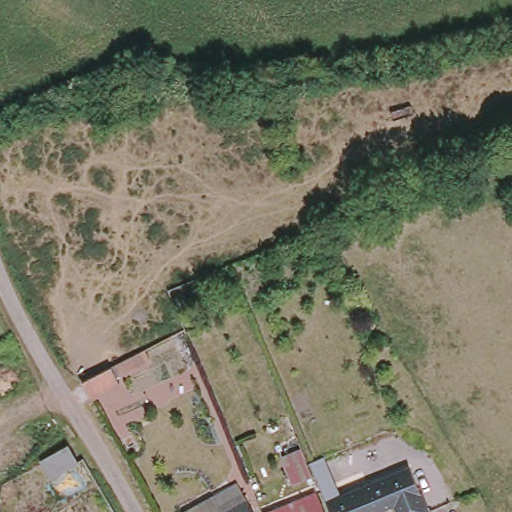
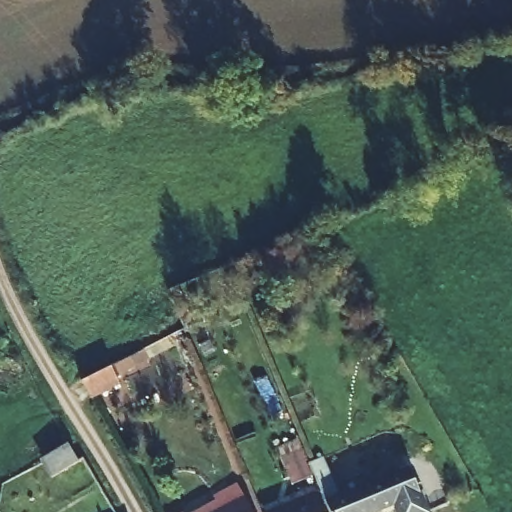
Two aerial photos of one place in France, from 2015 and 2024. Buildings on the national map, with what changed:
unchanged [(111,365),(124,382),(97,400),(86,382),(111,365)]
unchanged [(80,461),(56,471),(50,459),(49,457),(57,453),(72,446),(80,461)]
unchanged [(409,472),(420,497),(426,512),(397,512),(395,507),(383,512),(328,512),(318,488),(308,465),(323,459),(333,482),(342,499),(409,472)]
unchanged [(303,460),(312,478),(302,483),(293,464),(303,460)]
unchanged [(290,469),(294,478),(287,480),(283,472),(290,469)]
unchanged [(196,509),(234,488),(247,512),(189,512),(196,509)]
unchanged [(317,494),(325,512),(275,512),(317,494)]

